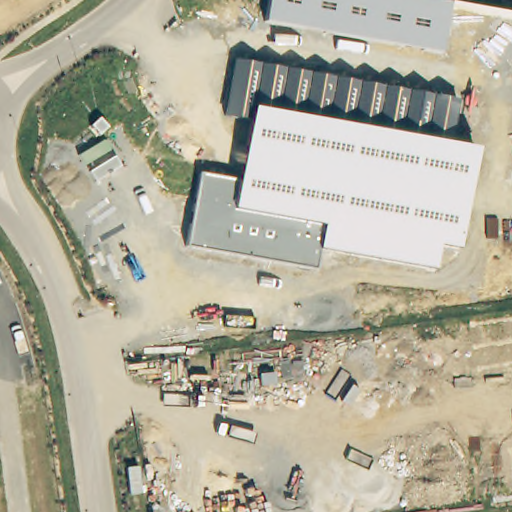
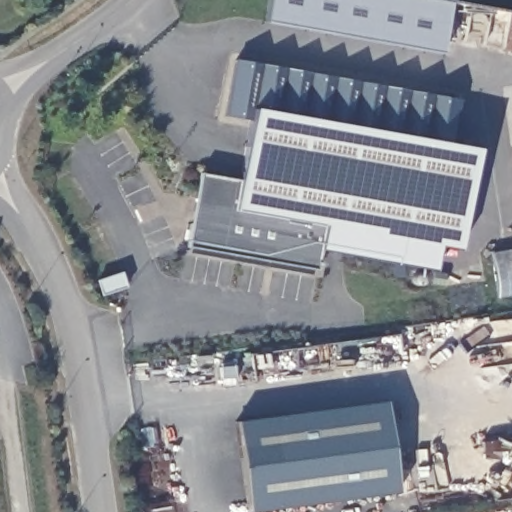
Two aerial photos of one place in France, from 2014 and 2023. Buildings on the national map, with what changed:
unchanged [(268,22),(271,0),(441,0),(452,2),(443,52),(268,22)]
unchanged [(452,143),(479,148),(458,249),(441,246),(435,270),(321,250),(317,270),(190,246),(202,174),(240,180),(251,121),(226,117),(236,60),(461,99),(452,143)]
new [(497,296),(490,253),(512,249),(512,294),(497,296)]
new [(249,511),(235,420),(385,399),(397,492),(249,511)]

